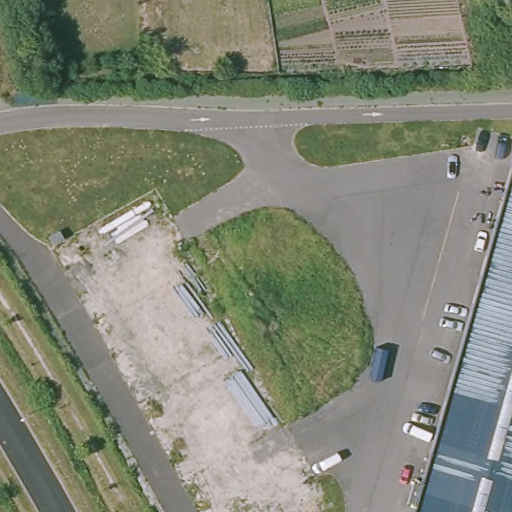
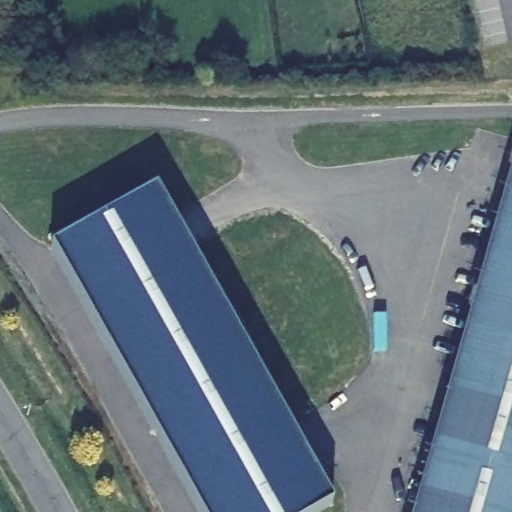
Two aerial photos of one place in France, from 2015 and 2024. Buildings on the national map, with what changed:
unchanged [(414,512),(512,171),(512,512),(414,512)]
new [(303,512),(203,512),(50,244),(161,196),(327,498),(303,512)]

